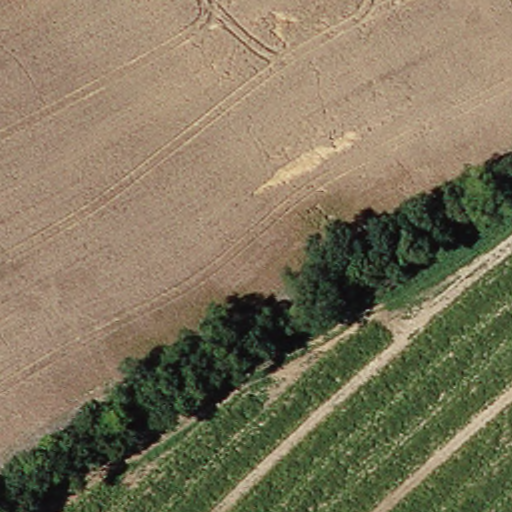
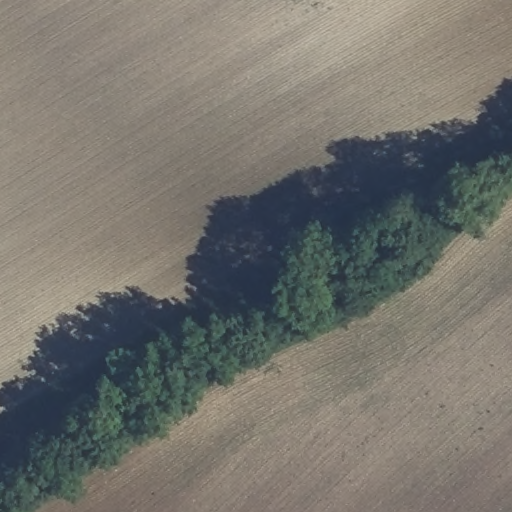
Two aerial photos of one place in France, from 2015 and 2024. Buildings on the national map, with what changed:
[]

